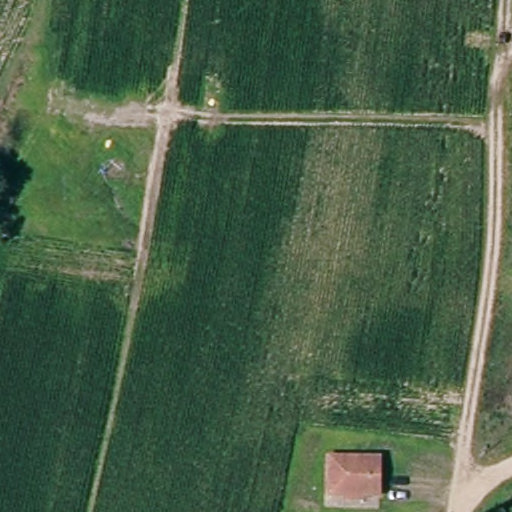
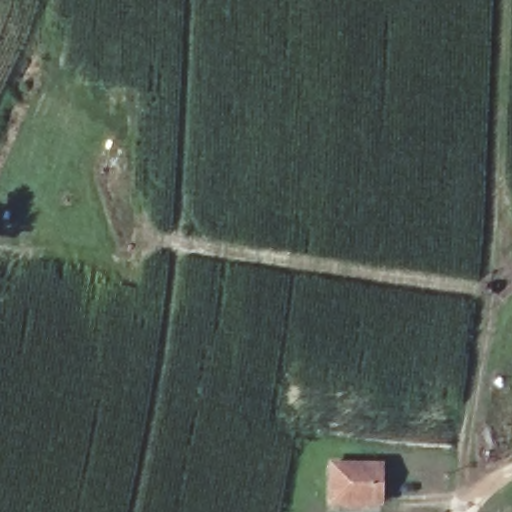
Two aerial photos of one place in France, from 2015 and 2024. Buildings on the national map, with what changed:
unchanged [(336,502),(336,465),(382,465),(383,502),(336,502)]

